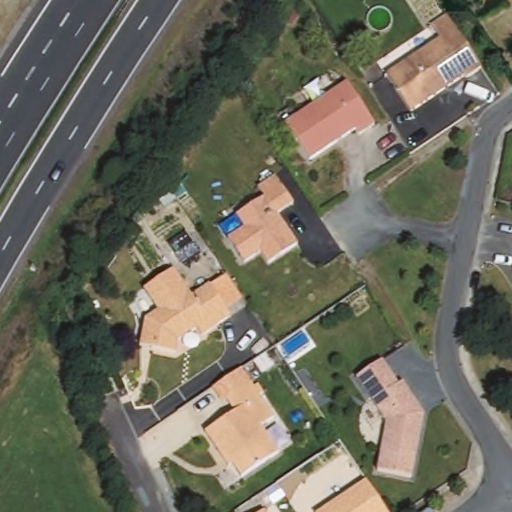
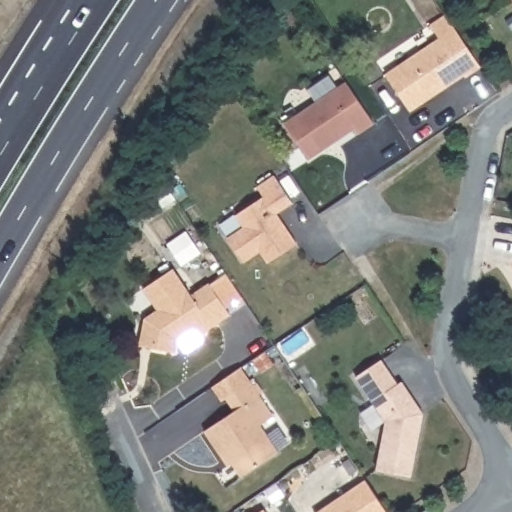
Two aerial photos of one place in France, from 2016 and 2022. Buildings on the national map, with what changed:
unchanged [(465,78),(463,76),(410,112),(385,76),(438,40),(430,26),(445,16),(480,67),(465,78)]
unchanged [(372,128),(357,137),(352,131),(309,162),(283,125),(343,85),(372,128)]
unchanged [(291,205),(276,215),(293,248),(270,266),(259,253),(244,263),(227,239),(244,227),(235,214),(262,195),(257,187),(273,176),(291,205)]
unchanged [(139,340),(142,320),(155,311),(140,291),(170,270),(187,296),(206,285),(207,286),(223,275),(238,297),(222,308),(227,315),(198,335),(193,327),(174,341),(172,353),(149,350),(137,348),(139,340)]
unchanged [(511,276),(512,272),(512,277),(511,276)]
unchanged [(376,473),(387,422),(357,380),(383,362),(401,387),(405,385),(423,415),(412,480),(376,473)]
unchanged [(259,425),(276,453),(239,476),(232,464),(226,467),(204,432),(235,413),(225,397),(221,400),(212,386),(228,375),(240,367),(248,380),(272,416),(259,425)]
unchanged [(367,480),(388,512),(317,512),(367,480)]

